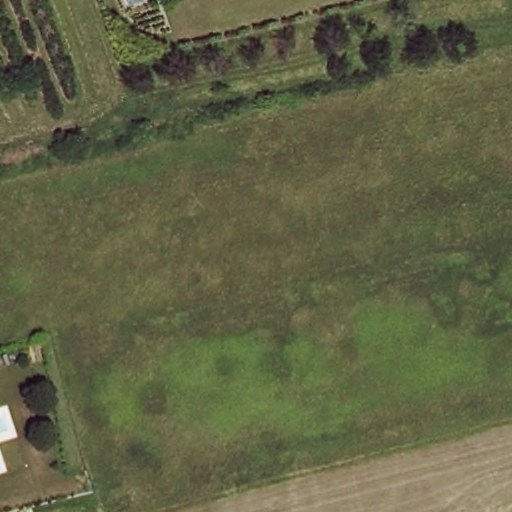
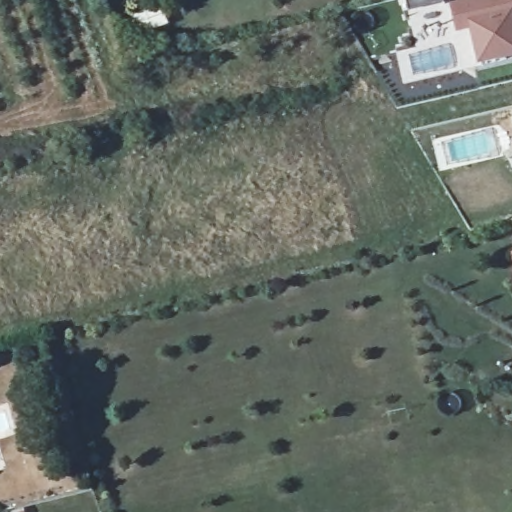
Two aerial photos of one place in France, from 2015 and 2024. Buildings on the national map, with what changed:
new [(486,0),(512,0),(512,63),(479,72),(470,35),(458,39),(449,10),(486,0)]
new [(512,256),(512,259),(511,257),(512,256)]

